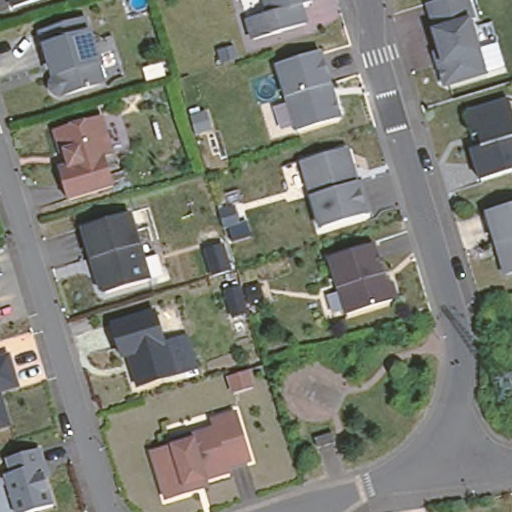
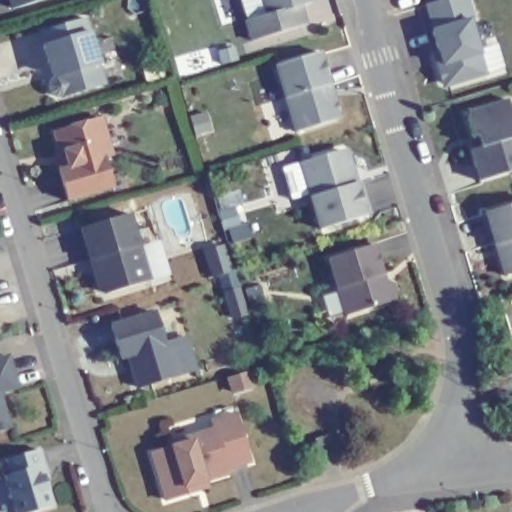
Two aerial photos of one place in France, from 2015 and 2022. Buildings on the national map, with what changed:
unchanged [(16,3),(15,0),(27,0),(16,3)]
unchanged [(317,1),(305,5),(310,23),(258,39),(252,20),(274,13),(269,0),(317,0),(317,1)]
unchanged [(452,0),(465,0),(472,24),(468,25),(467,23),(432,34),(425,8),(452,0)]
unchanged [(102,81),(61,94),(56,94),(52,93),(47,88),(47,81),(49,77),(54,74),(50,59),(45,60),(37,33),(83,19),(102,81)]
unchanged [(437,55),(431,35),(432,34),(467,23),(468,25),(484,77),(447,88),(441,85),(437,73),(432,57),(437,55)]
unchanged [(344,106),(340,113),(302,125),(282,58),(325,45),(335,78),(340,93),(344,106)]
unchanged [(473,109),(510,97),(512,102),(512,169),(484,178),(474,147),(479,145),(475,135),(470,115),(473,109)]
unchanged [(59,132),(105,119),(115,156),(107,158),(115,189),(70,201),(62,170),(68,168),(65,154),(59,132)]
unchanged [(375,211),(325,225),(306,159),(345,147),(352,150),(356,164),(360,179),(365,178),(375,211)]
unchanged [(512,203),(512,270),(507,271),(502,251),(498,240),(489,209),(512,203)]
unchanged [(85,229),(132,215),(152,282),(109,295),(103,292),(100,280),(94,262),(85,229)]
unchanged [(373,245),(384,281),(392,285),(395,294),(390,302),(345,315),(329,259),(373,245)]
unchanged [(123,357),(114,326),(157,313),(166,344),(172,342),(181,374),(139,387),(134,371),(129,355),(123,357)]
unchanged [(1,351),(10,382),(0,385),(0,352),(1,351)]
unchanged [(182,490),(152,499),(138,452),(159,447),(157,442),(201,429),(198,420),(222,413),(237,461),(213,468),(215,473),(192,480),(194,486),(182,490)]
unchanged [(2,420),(0,421),(0,414),(2,420)]
unchanged [(320,437),(302,442),(300,433),(317,428),(320,437)]
unchanged [(15,512),(3,474),(9,472),(5,458),(37,449),(43,469),(46,477),(42,478),(50,504),(25,512),(15,512)]

